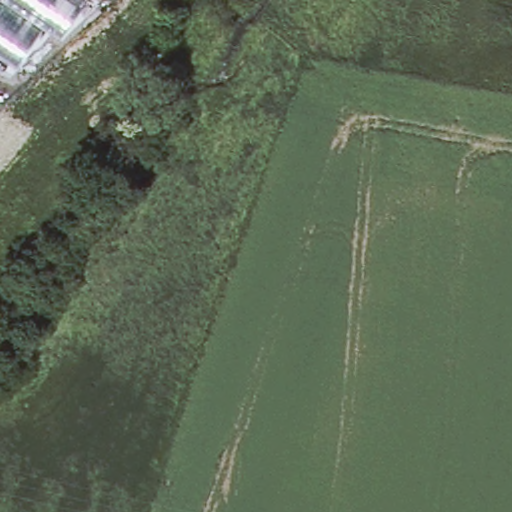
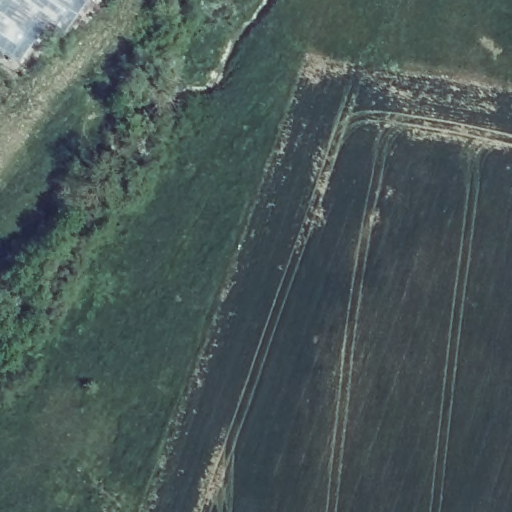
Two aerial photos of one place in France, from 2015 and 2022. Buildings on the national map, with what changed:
unchanged [(62,33),(45,22),(21,59),(0,46),(0,0),(86,0),(62,33)]

